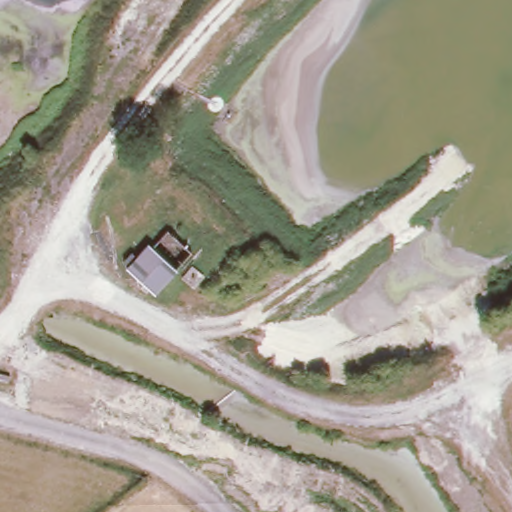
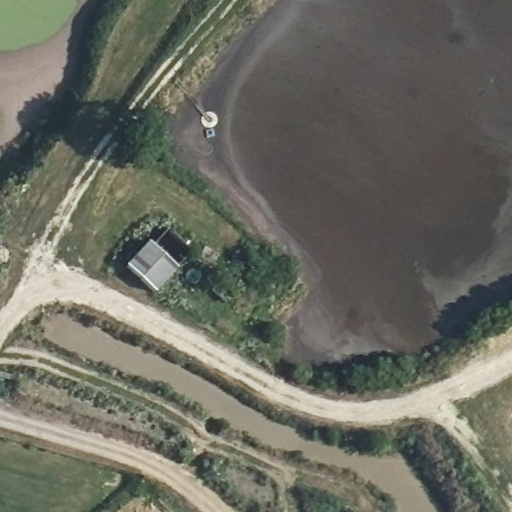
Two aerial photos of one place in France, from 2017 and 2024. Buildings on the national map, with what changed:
unchanged [(152,290),(125,266),(148,239),(156,246),(167,232),(187,252),(174,267),(152,290)]

